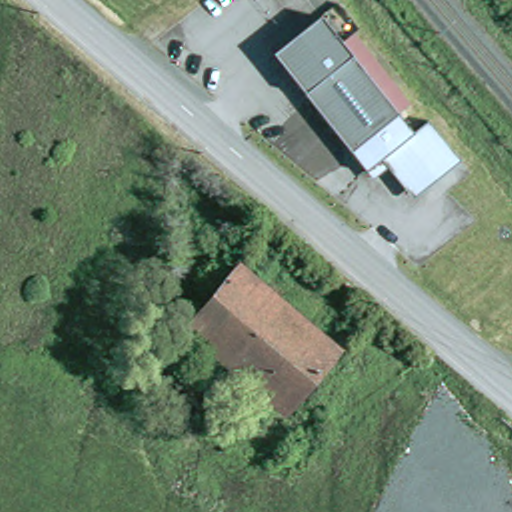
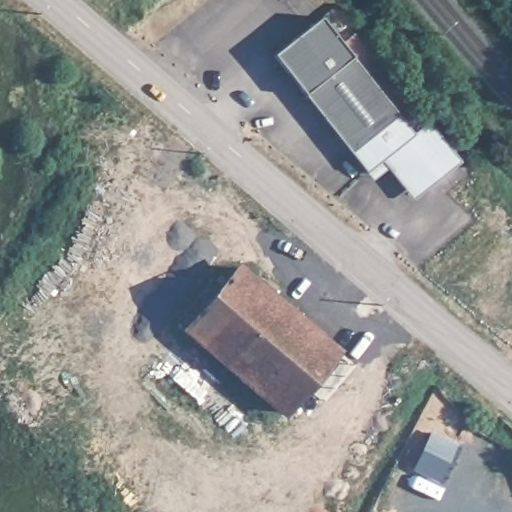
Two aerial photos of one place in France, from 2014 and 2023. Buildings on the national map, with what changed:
unchanged [(274,55),(321,17),(399,116),(353,155),(274,55)]
unchanged [(399,116),(414,137),(431,126),(462,167),(413,202),(391,172),(374,182),(353,155),(399,116)]
unchanged [(281,419),(184,333),(236,271),(335,357),(281,419)]
new [(436,435),(457,446),(439,480),(418,469),(436,435)]

